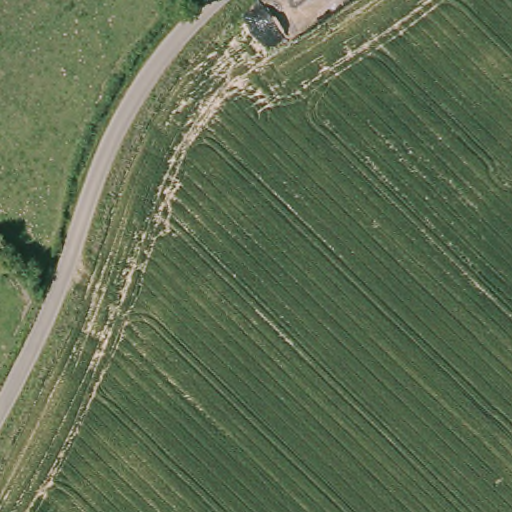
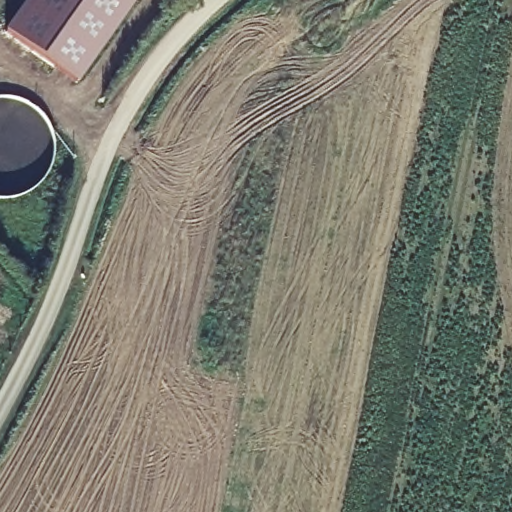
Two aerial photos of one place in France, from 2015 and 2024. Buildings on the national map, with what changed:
new [(5,30),(26,0),(136,0),(78,82),(5,30)]

